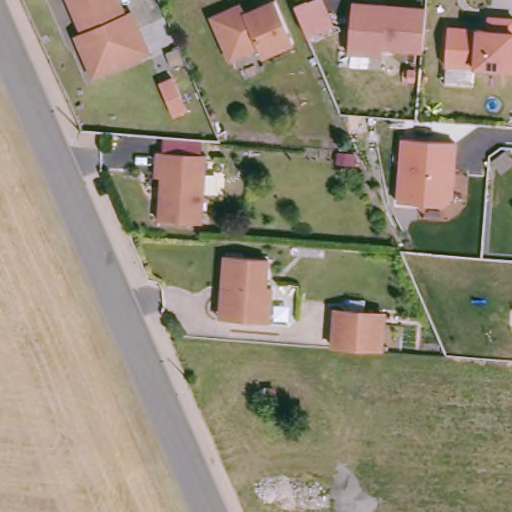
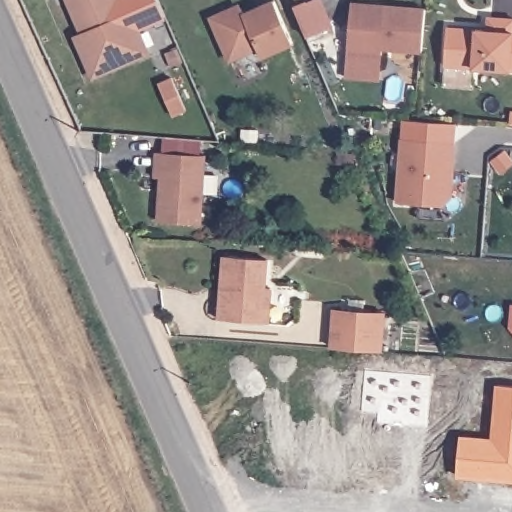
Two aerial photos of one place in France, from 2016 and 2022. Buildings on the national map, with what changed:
unchanged [(139,57),(94,78),(74,37),(81,33),(65,0),(116,0),(122,12),(128,12),(138,29),(149,53),(139,57)]
unchanged [(231,4),(233,8),(243,3),(246,7),(251,7),(267,0),(276,0),(293,37),(264,51),(260,44),(231,55),(212,13),(231,4)]
unchanged [(420,50),(381,47),(381,53),(348,51),(352,0),(372,0),(424,4),(420,50)]
unchanged [(510,68),(473,66),(473,63),(442,62),(447,22),(484,25),(485,12),(512,15),(512,68),(510,68)]
unchanged [(442,203),(395,198),(401,137),(455,141),(451,194),(442,203)]
unchanged [(204,219),(163,216),(166,176),(158,175),(159,165),(159,150),(208,153),(204,219)]
unchanged [(224,282),(226,252),(268,255),(266,280),(274,281),(272,315),(228,311),(221,311),(224,282)]
unchanged [(334,343),(336,306),(382,310),(381,346),(334,343)]
new [(459,437),(492,440),(496,385),(512,386),(512,481),(456,476),(459,437)]
unchanged [(276,390),(276,401),(265,402),(265,390),(276,390)]

